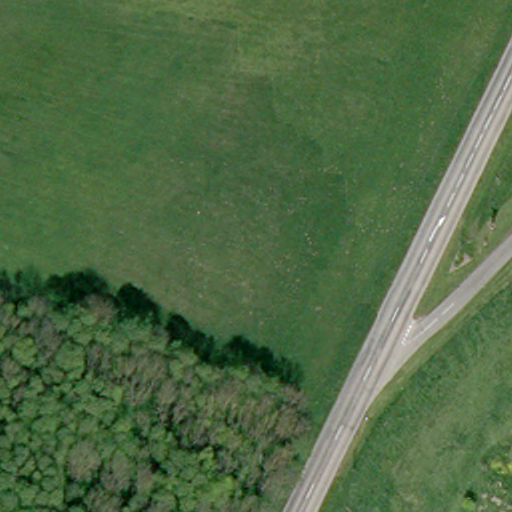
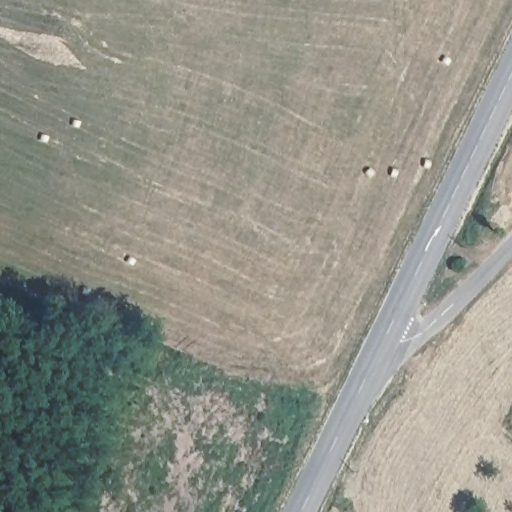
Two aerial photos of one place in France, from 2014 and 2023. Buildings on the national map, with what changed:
[]

